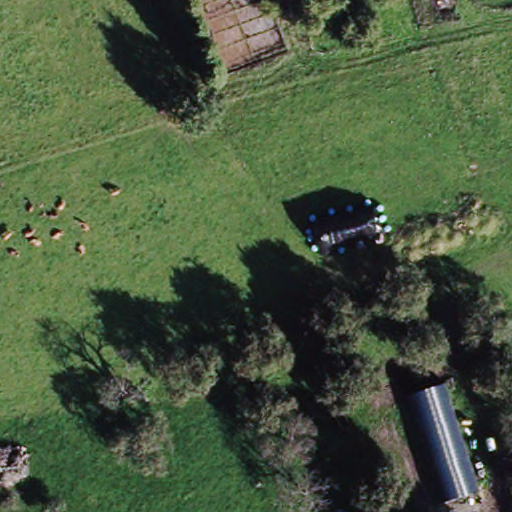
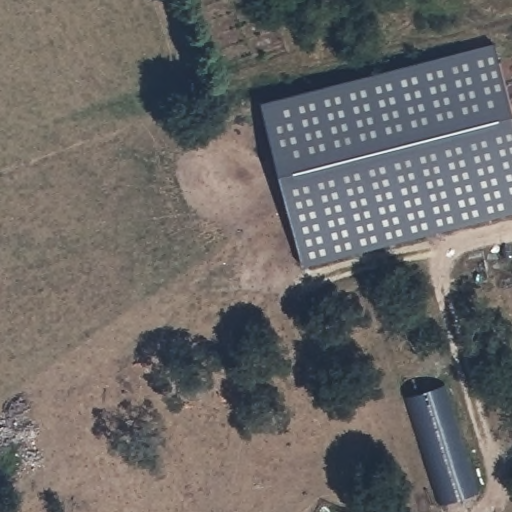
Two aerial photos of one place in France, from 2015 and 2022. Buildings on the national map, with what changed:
new [(512,113),(512,210),(303,262),(260,100),(494,41),(512,113)]
unchanged [(480,492),(447,502),(414,394),(449,383),(480,492)]

